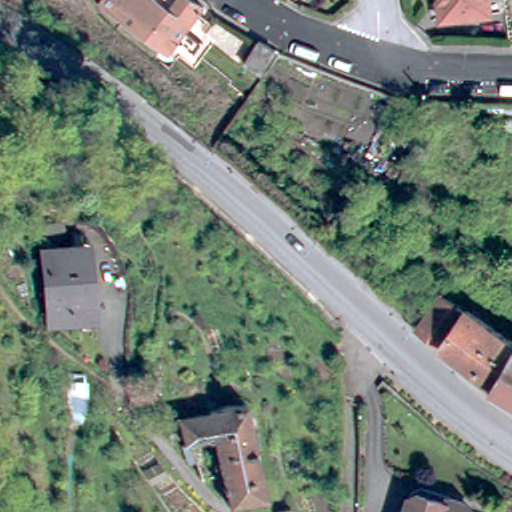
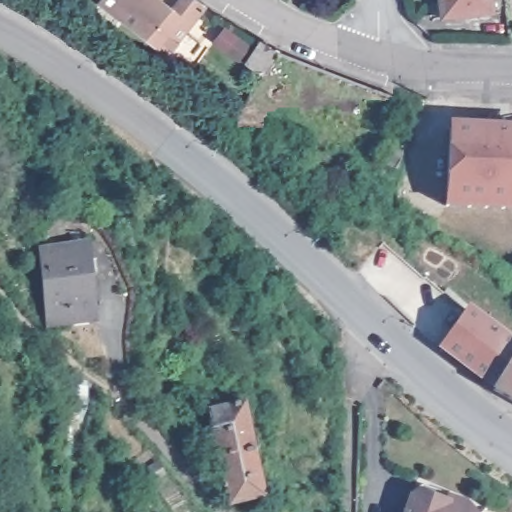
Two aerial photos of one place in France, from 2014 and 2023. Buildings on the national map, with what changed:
unchanged [(112,0),(142,0),(131,15),(112,0)]
unchanged [(212,0),(177,48),(131,15),(142,0),(212,0)]
unchanged [(442,0),(490,0),(492,12),(445,18),(442,0)]
unchanged [(279,51),(262,75),(245,64),(259,39),(279,51)]
new [(471,129),(507,130),(506,132),(512,132),(512,207),(447,205),(447,195),(450,129),(471,129)]
unchanged [(91,317),(52,322),(44,251),(84,247),(91,317)]
unchanged [(512,341),(512,361),(505,373),(495,388),(493,387),(440,347),(417,327),(442,294),(467,311),(512,341)]
unchanged [(495,388),(505,373),(512,361),(512,400),(494,390),(495,388)]
unchanged [(230,392),(239,390),(240,397),(245,396),(247,404),(252,402),(255,418),(250,420),(266,491),(227,499),(222,471),(200,476),(191,437),(180,440),(175,413),(174,412),(169,387),(202,379),(207,404),(232,399),(230,392)]
unchanged [(409,485),(443,495),(445,489),(461,493),(474,508),(473,512),(402,512),(409,485)]
unchanged [(277,511),(283,509),(291,507),(292,512),(277,512),(277,511)]

